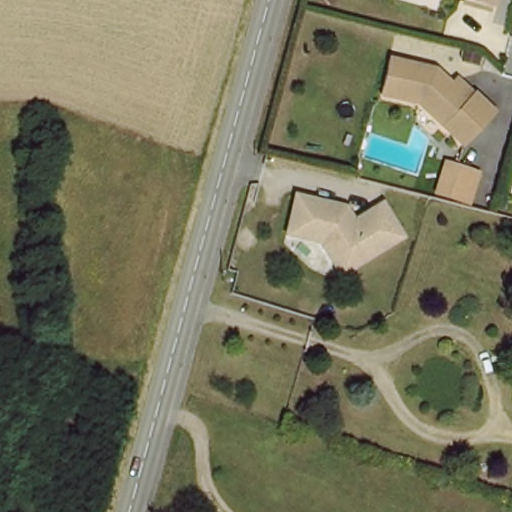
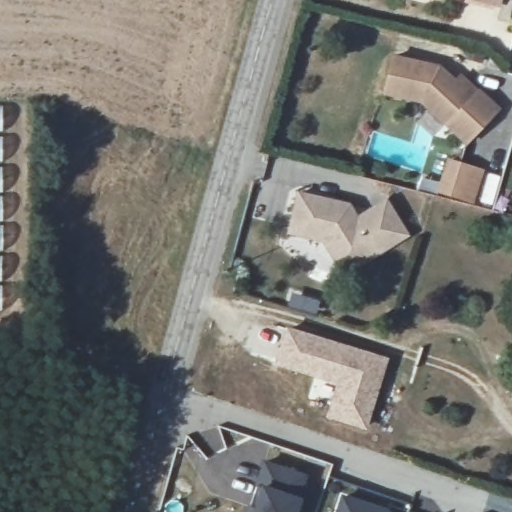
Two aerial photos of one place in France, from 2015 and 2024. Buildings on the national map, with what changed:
unchanged [(498,12),(457,0),(502,0),(498,12)]
unchanged [(468,143),(425,101),(385,90),(394,54),(439,64),(457,82),(464,75),(480,89),(500,109),(468,143)]
new [(2,251),(1,310),(0,311),(0,105),(2,104),(2,133),(2,163),(2,251)]
unchanged [(485,172),(477,203),(440,196),(446,163),(485,172)]
unchanged [(327,243),(293,234),(301,196),(346,206),(350,208),(360,222),(371,215),(387,204),(409,238),(365,266),(348,277),(340,264),(327,243)]
new [(290,290),(321,298),(316,315),(285,305),(290,290)]
new [(285,324),(390,356),(367,431),(325,417),(334,385),(273,365),(285,324)]
new [(255,486),(263,461),(309,475),(302,497),(298,512),(252,512),(260,488),(255,486)]
new [(392,512),(342,512),(347,497),(392,512)]

